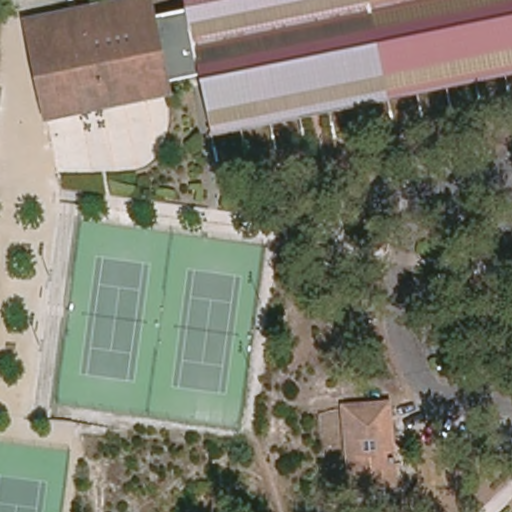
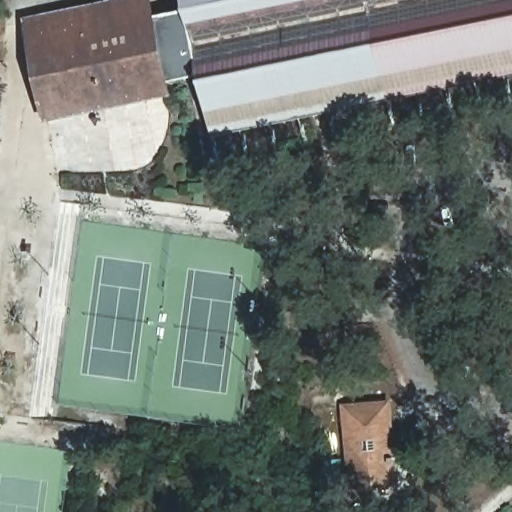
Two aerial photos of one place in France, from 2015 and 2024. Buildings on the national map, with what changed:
unchanged [(201,75),(173,80),(175,96),(45,119),(45,115),(19,119),(8,66),(37,61),(26,17),(115,0),(154,0),(158,16),(187,9),(186,0),(512,0),(512,73),(212,137),(201,75)]
unchanged [(351,486),(350,474),(343,406),(388,402),(394,471),(395,481),(351,486)]

